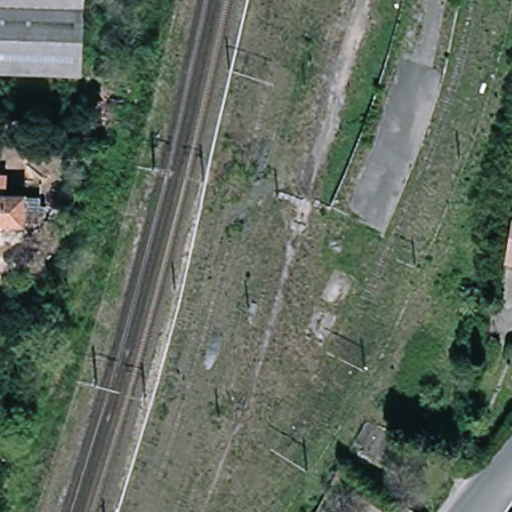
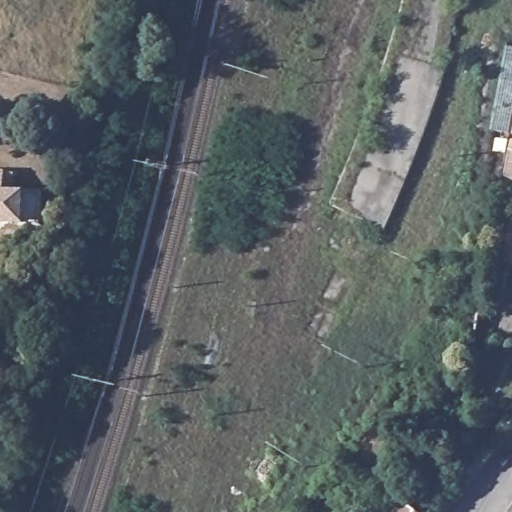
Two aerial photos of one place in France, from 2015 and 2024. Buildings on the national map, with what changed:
demolished [(79,71),(0,68),(0,0),(81,0),(79,71)]
unchanged [(15,176),(14,198),(33,198),(33,226),(0,225),(0,175),(15,176)]
unchanged [(512,232),(512,260),(507,259),(512,232)]
unchanged [(465,474),(452,478),(455,464),(476,461),(465,474)]
unchanged [(423,512),(403,512),(407,506),(410,503),(413,505),(423,512)]

